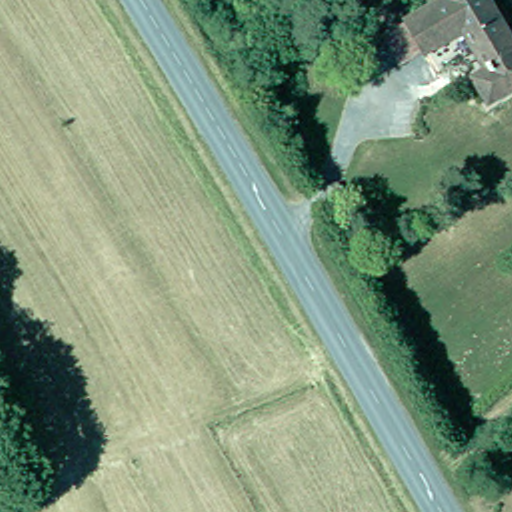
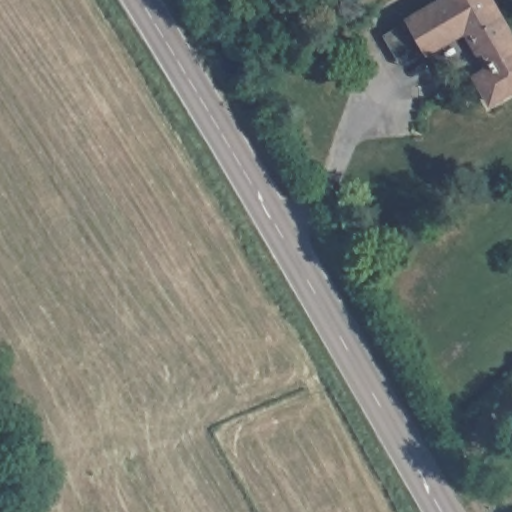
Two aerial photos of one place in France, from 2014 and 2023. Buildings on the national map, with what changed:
unchanged [(512,39),(512,82),(489,96),(476,74),(494,63),(468,18),(424,44),(408,17),(437,0),(489,0),(512,39)]

